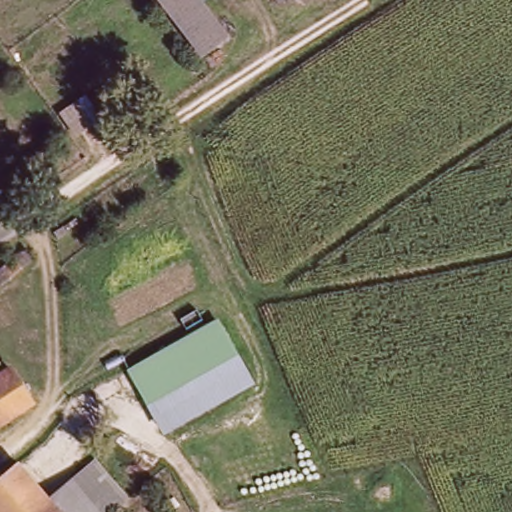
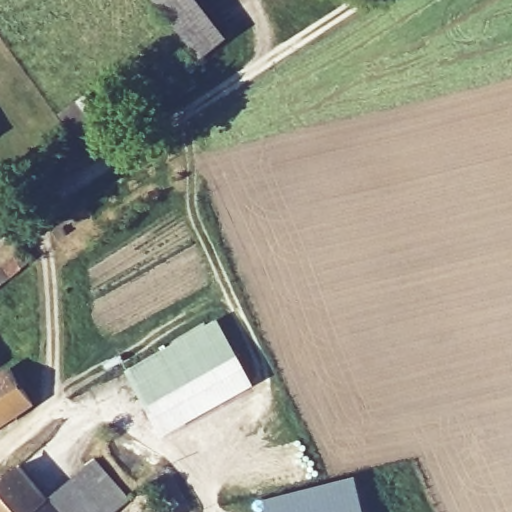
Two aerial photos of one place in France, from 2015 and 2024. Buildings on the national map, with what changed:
unchanged [(164,0),(205,0),(229,31),(202,51),(164,0)]
unchanged [(80,133),(65,112),(81,100),(97,120),(80,133)]
unchanged [(0,285),(0,269),(27,245),(36,255),(0,285)]
unchanged [(217,315),(255,385),(165,433),(125,370),(217,315)]
unchanged [(35,401),(0,425),(0,378),(14,370),(35,401)]
unchanged [(115,512),(56,512),(47,501),(93,460),(99,467),(122,493),(127,500),(115,512)]
unchanged [(34,512),(0,512),(0,482),(19,466),(47,501),(34,512)]
new [(366,512),(270,512),(267,498),(357,476),(366,512)]
unchanged [(56,512),(34,512),(47,501),(56,512)]

